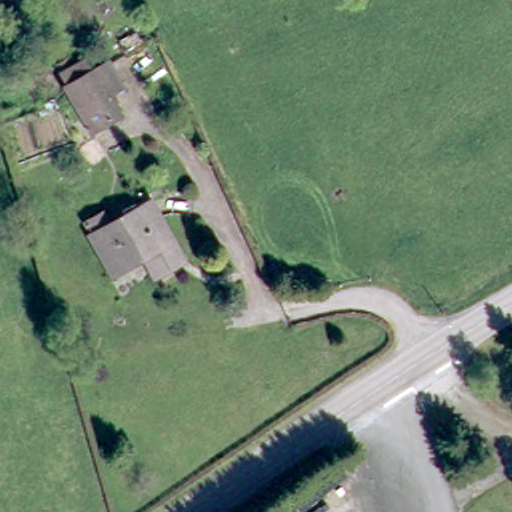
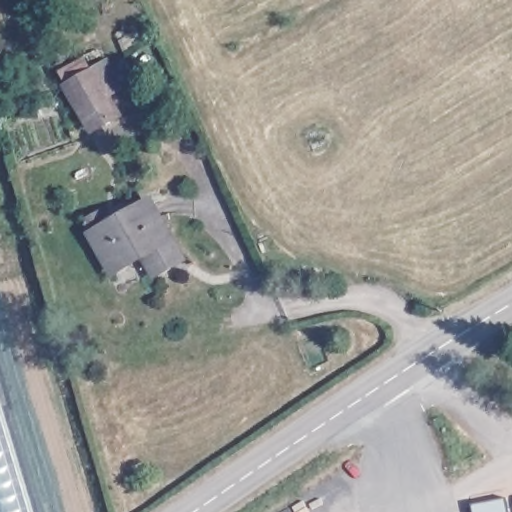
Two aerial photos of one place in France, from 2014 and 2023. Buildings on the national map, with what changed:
unchanged [(92,135),(79,112),(67,93),(57,75),(71,67),(80,85),(115,64),(130,88),(114,97),(115,100),(124,118),(92,135)]
unchanged [(143,260),(116,273),(97,238),(154,207),(184,260),(162,271),(152,276),(143,260)]
new [(0,403),(32,512),(0,512),(0,403)]

